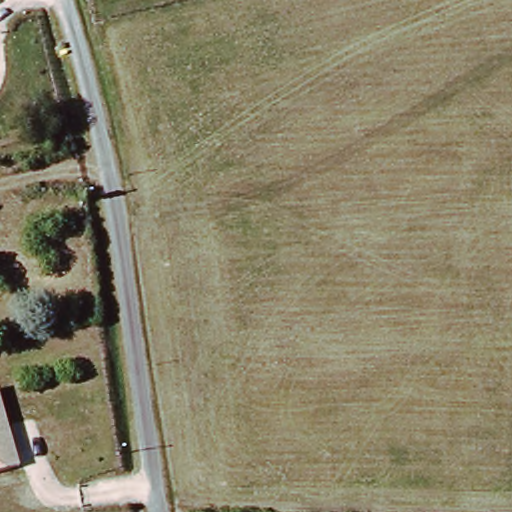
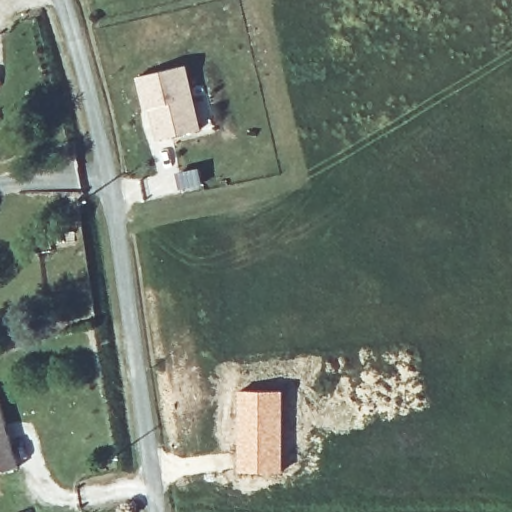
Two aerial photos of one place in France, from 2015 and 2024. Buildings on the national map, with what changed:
new [(181,65),(196,129),(154,139),(147,108),(141,109),(134,76),(181,65)]
new [(236,391),(284,389),(283,472),(235,472),(236,391)]
unchanged [(23,468),(0,474),(0,390),(1,390),(23,468)]

